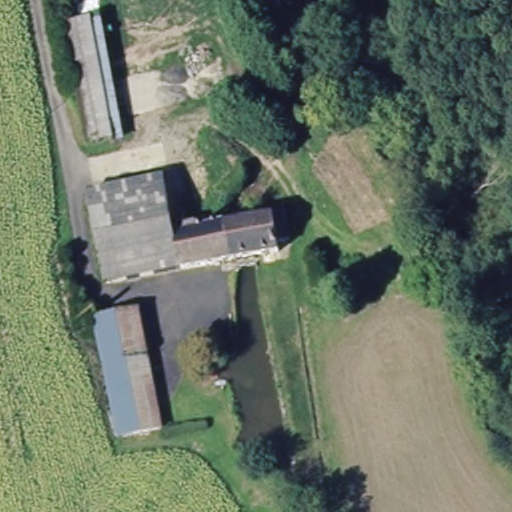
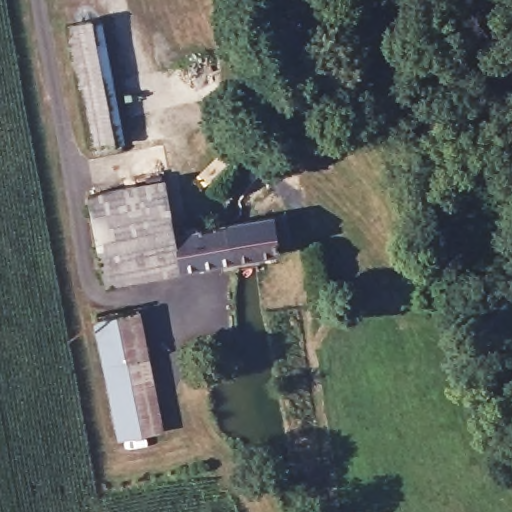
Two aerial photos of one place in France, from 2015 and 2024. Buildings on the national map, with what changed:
unchanged [(69,26),(99,19),(125,135),(90,143),(69,26)]
unchanged [(88,189),(160,174),(175,233),(282,215),(287,234),(282,247),(107,281),(88,189)]
unchanged [(104,360),(95,320),(136,311),(143,351),(104,360)]
unchanged [(161,427),(119,435),(104,360),(143,351),(161,427)]

